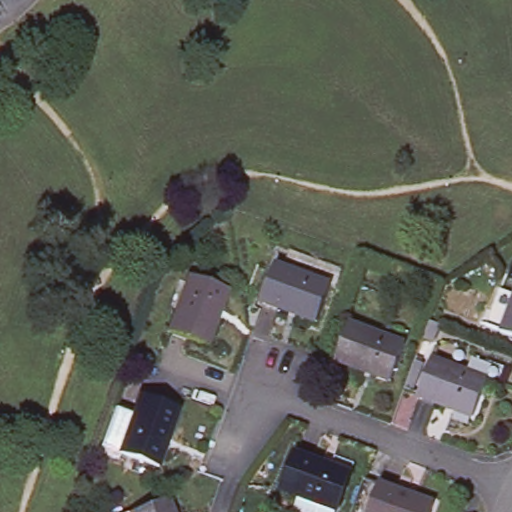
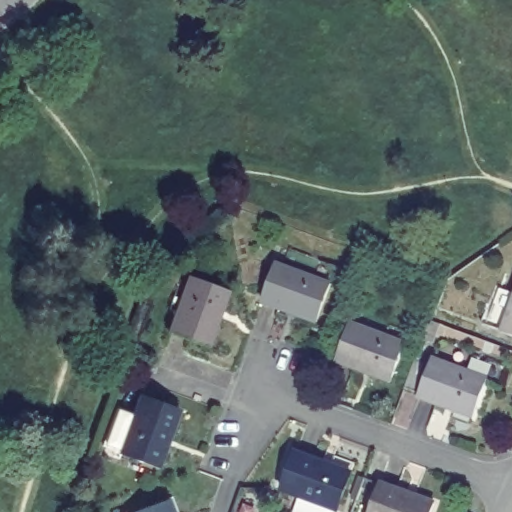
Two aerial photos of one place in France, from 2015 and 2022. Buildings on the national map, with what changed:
unchanged [(325,322),(270,301),(284,265),(339,286),(325,322)]
unchanged [(212,342),(175,329),(195,273),(232,286),(212,342)]
unchanged [(510,328),(494,322),(508,285),(512,287),(512,329),(510,328)]
unchanged [(396,377),(339,357),(352,320),(409,341),(396,377)]
unchanged [(492,380),(478,417),(422,397),(437,359),(492,380)]
unchanged [(183,407),(162,463),(125,450),(107,443),(122,405),(140,411),(147,393),(183,407)]
unchanged [(307,493),(287,486),(301,449),(357,471),(344,507),(342,506),(339,512),(312,512),(301,508),(307,493)]
unchanged [(434,512),(369,512),(382,479),(438,501),(434,512)]
unchanged [(174,493),(181,512),(126,512),(136,508),(174,493)]

